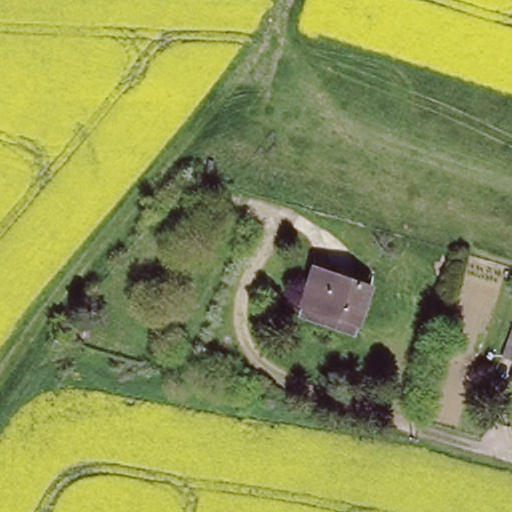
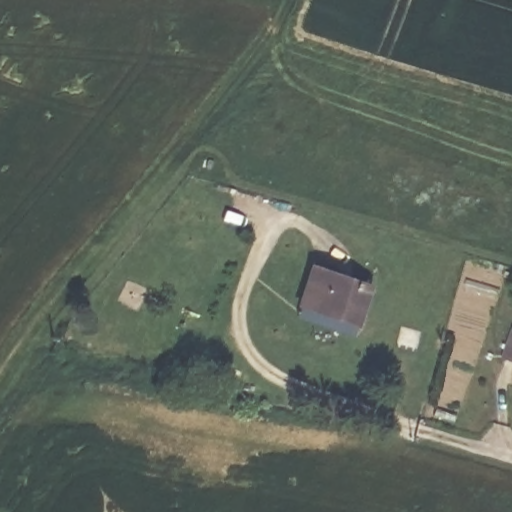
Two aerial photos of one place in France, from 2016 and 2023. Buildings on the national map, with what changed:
unchanged [(297,311),(301,300),(314,263),(370,283),(358,320),(354,330),(297,311)]

